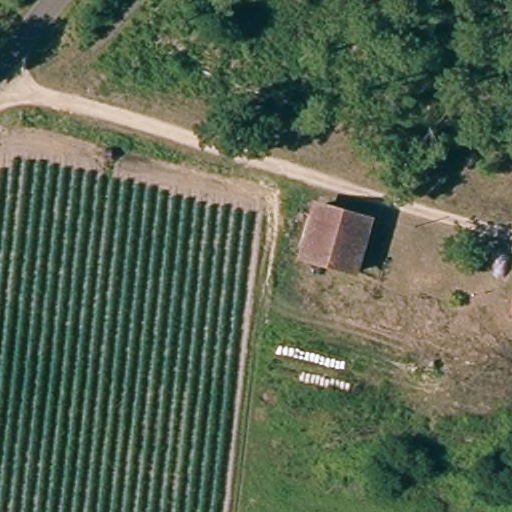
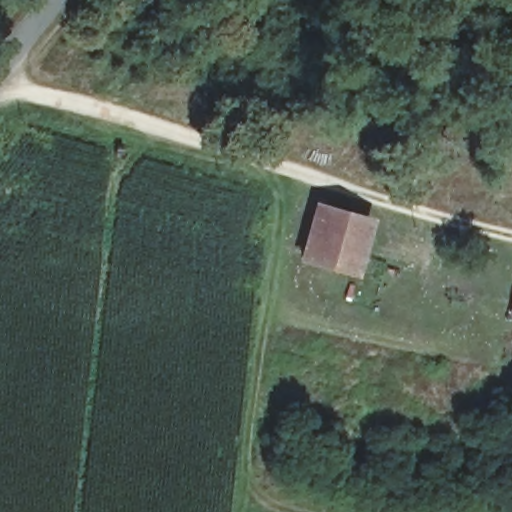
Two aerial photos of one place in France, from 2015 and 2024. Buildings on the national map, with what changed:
unchanged [(306,259),(315,209),(365,223),(370,224),(358,269),(348,267),(306,259)]
unchanged [(512,312),(510,311),(512,301),(512,312)]

